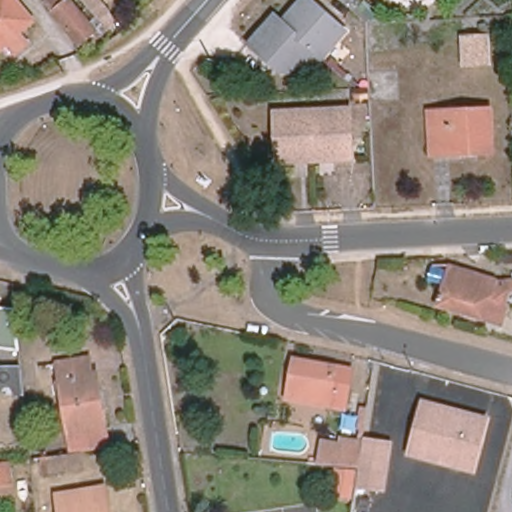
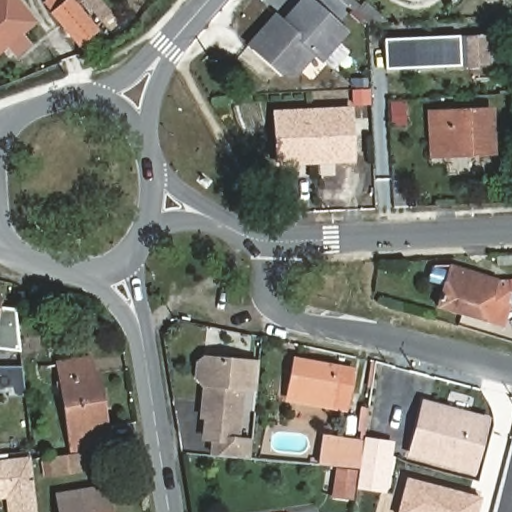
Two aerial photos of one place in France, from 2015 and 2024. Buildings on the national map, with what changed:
unchanged [(26,42),(12,54),(4,45),(0,47),(0,0),(14,0),(31,21),(17,32),(26,42)]
unchanged [(68,0),(73,0),(98,27),(79,45),(52,15),(56,12),(46,1),(48,0),(66,0),(67,1),(68,0)]
unchanged [(310,0),(341,28),(318,55),(310,47),(278,19),(295,0),(310,0)]
unchanged [(310,47),(310,49),(292,68),(277,69),(245,41),(271,12),(278,19),(310,47)]
new [(462,67),(387,71),(385,41),(460,37),(462,67)]
unchanged [(483,64),(465,65),(463,41),(482,41),(483,64)]
unchanged [(309,111),(346,109),(349,160),(311,162),(309,111)]
unchanged [(490,110),(492,152),(435,156),(432,113),(490,110)]
unchanged [(311,162),(273,163),(271,112),(309,111),(311,162)]
unchanged [(512,253),(512,266),(497,267),(497,254),(512,253)]
unchanged [(449,267),(502,282),(512,281),(512,293),(502,327),(461,315),(437,308),(449,267)]
new [(20,352),(0,349),(0,308),(15,309),(20,352)]
unchanged [(94,372),(97,371),(110,445),(72,451),(59,361),(90,357),(92,367),(94,372)]
new [(250,458),(210,455),(211,442),(202,441),(204,420),(200,419),(202,388),(195,380),(195,365),(204,357),(259,361),(256,391),(246,391),(241,437),(252,438),(250,458)]
unchanged [(350,372),(343,411),(287,402),(295,361),(350,372)]
new [(9,396),(9,392),(0,392),(0,366),(22,366),(25,396),(9,396)]
unchanged [(410,455),(425,405),(487,423),(473,473),(456,468),(431,462),(410,455)]
unchanged [(385,490),(357,486),(360,470),(320,467),(325,446),(341,447),(343,442),(363,446),(365,440),(392,445),(385,490)]
new [(54,473),(45,475),(44,459),(51,458),(54,473)]
new [(7,486),(0,487),(0,466),(10,465),(32,461),(33,471),(37,512),(10,512),(7,486)]
demolished [(14,486),(0,487),(0,465),(10,465),(14,486)]
new [(357,470),(352,500),(331,497),(335,467),(357,470)]
new [(406,478),(482,497),(478,512),(397,512),(406,478)]
unchanged [(59,493),(105,485),(109,512),(62,512),(59,493)]
new [(0,498),(0,487),(7,486),(9,497),(0,498)]
demolished [(54,508),(54,512),(40,512),(40,510),(54,508)]

